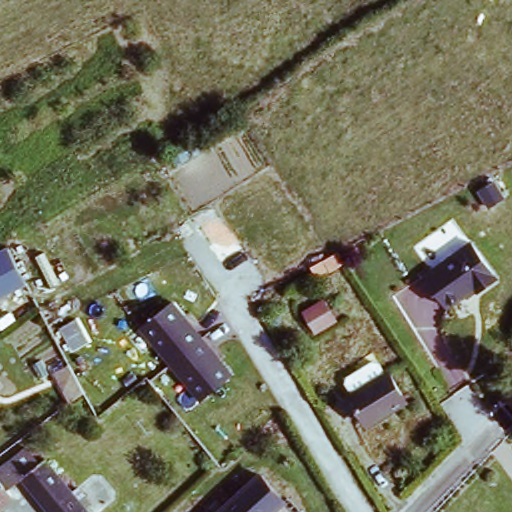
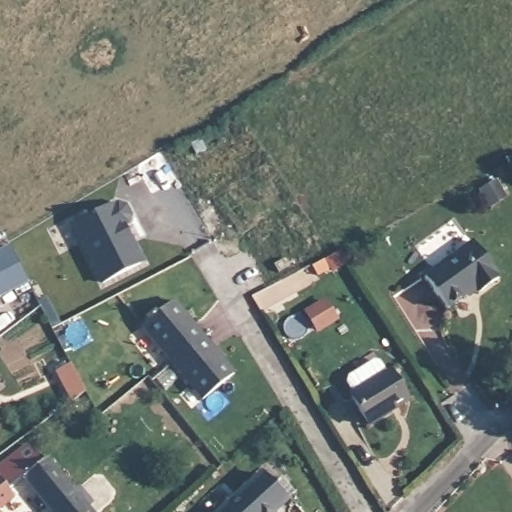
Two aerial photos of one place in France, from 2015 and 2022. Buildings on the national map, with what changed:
new [(117,208),(118,210),(122,208),(129,209),(134,218),(132,225),(128,227),(149,264),(110,286),(78,229),(117,208)]
unchanged [(481,296),(478,290),(449,310),(428,279),(476,245),(501,282),(481,296)]
unchanged [(5,249),(25,286),(0,300),(0,252),(5,249)]
unchanged [(182,297),(238,368),(205,395),(148,321),(182,297)]
unchanged [(329,301),(340,317),(324,328),(314,312),(329,301)]
unchanged [(411,406),(376,432),(356,404),(345,387),(375,366),(385,383),(391,378),(411,406)]
unchanged [(64,376),(78,368),(92,394),(78,403),(64,376)]
unchanged [(23,454),(36,473),(25,482),(10,493),(17,504),(5,512),(0,512),(0,470),(23,454)]
unchanged [(54,462),(96,512),(49,512),(25,482),(36,473),(54,462)]
unchanged [(286,496),(268,512),(225,512),(266,474),(286,496)]

